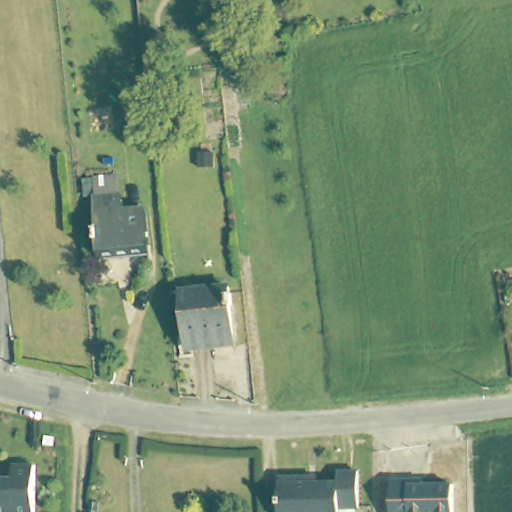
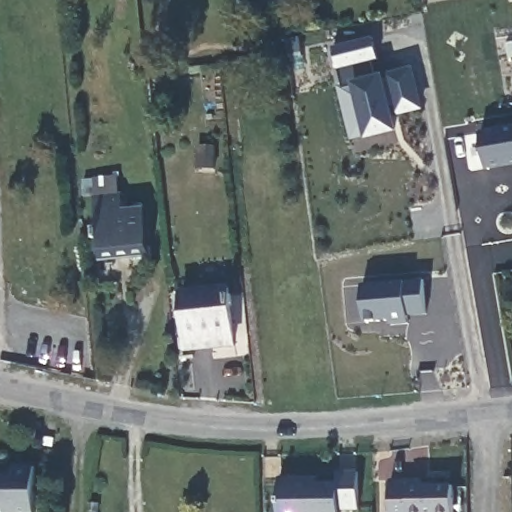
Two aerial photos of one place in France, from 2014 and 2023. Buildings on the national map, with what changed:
new [(342,84),(333,47),(372,37),(378,59),(372,61),(375,76),(413,67),(424,109),(394,114),(398,131),(370,136),(352,139),(337,85),(342,84)]
new [(480,131),(512,125),(512,164),(487,168),(480,131)]
unchanged [(119,176),(124,208),(148,207),(153,256),(103,263),(89,179),(119,176)]
new [(422,279),(425,313),(406,314),(407,322),(388,323),(387,318),(364,319),(361,284),(406,281),(422,279)]
unchanged [(242,342),(195,347),(189,294),(236,289),(242,342)]
unchanged [(42,437),(53,437),(53,445),(42,445),(42,437)]
unchanged [(13,481),(13,468),(35,468),(34,512),(0,512),(0,481),(13,481)]
unchanged [(312,481),(312,485),(342,485),(342,474),(362,474),(362,511),(343,511),(343,512),(283,512),(283,480),(312,481)]
unchanged [(416,475),(417,484),(454,483),(456,512),(394,512),(392,476),(416,475)]

